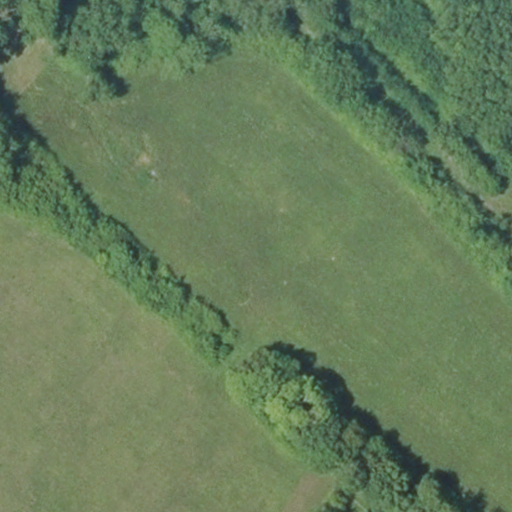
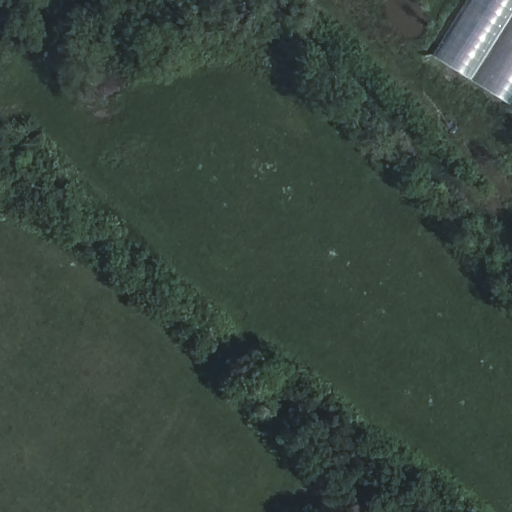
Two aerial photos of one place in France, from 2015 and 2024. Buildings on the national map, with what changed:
new [(512,106),(433,56),(469,0),(512,0),(512,106)]

